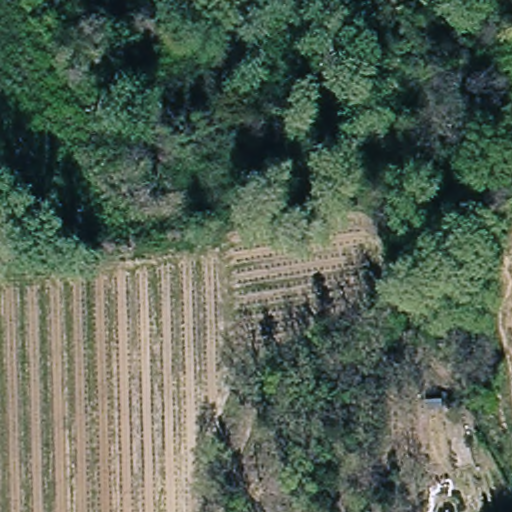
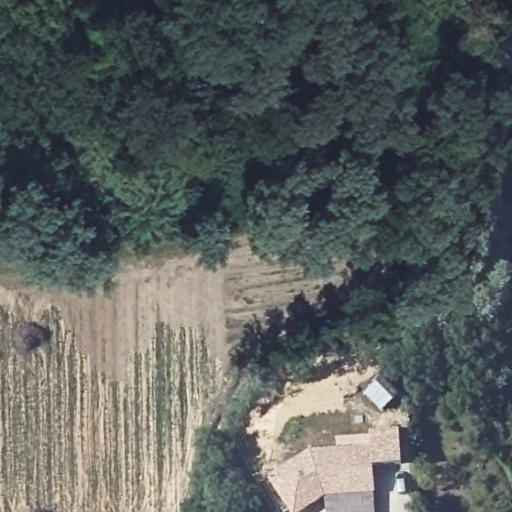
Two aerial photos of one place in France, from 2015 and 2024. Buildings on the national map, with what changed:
new [(325,500),(305,512),(288,512),(268,482),(311,452),(371,449),(375,496),(325,500)]

